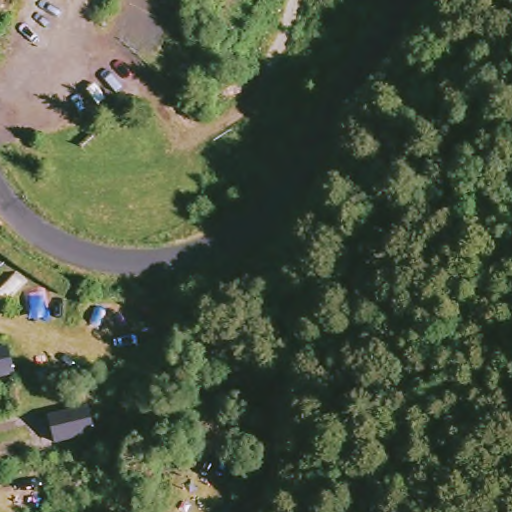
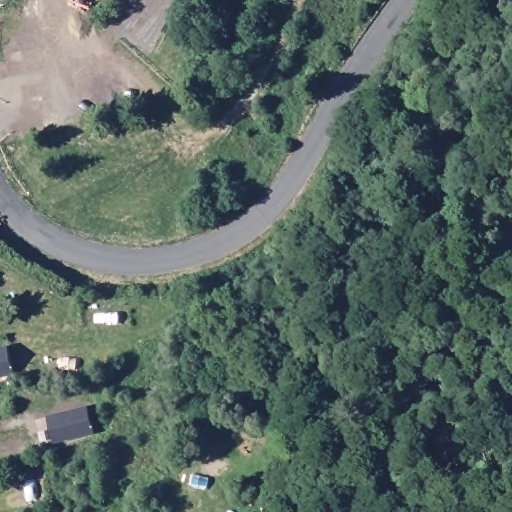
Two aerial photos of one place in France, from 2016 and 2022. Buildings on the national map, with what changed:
unchanged [(92,408),(101,435),(59,446),(50,420),(92,408)]

